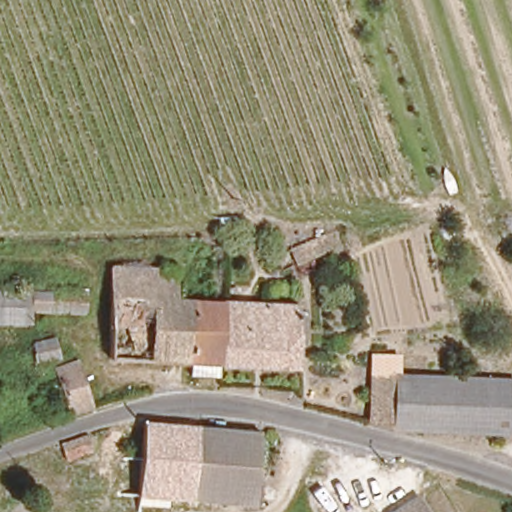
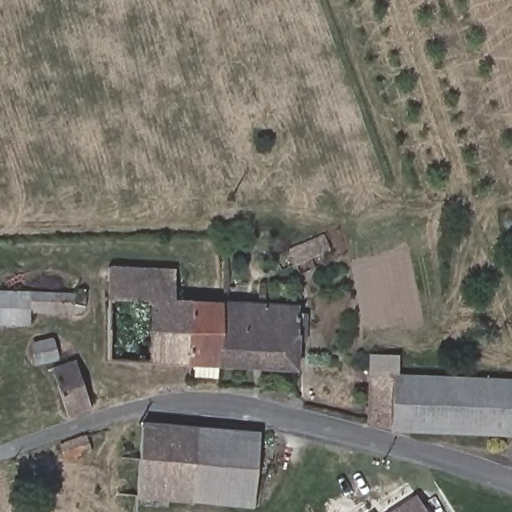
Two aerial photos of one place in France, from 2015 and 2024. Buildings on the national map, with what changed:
unchanged [(290,267),(285,255),(332,236),(336,248),(290,267)]
unchanged [(216,366),(105,360),(109,271),(174,272),(174,302),(220,304),(216,366)]
unchanged [(27,290),(87,292),(87,314),(30,312),(30,326),(0,326),(0,288),(27,290)]
unchanged [(297,308),(293,370),(216,366),(220,304),(297,308)]
unchanged [(60,352),(42,357),(37,343),(55,338),(60,352)]
unchanged [(394,358),(396,377),(512,380),(512,416),(511,434),(396,430),(370,422),(370,357),(394,358)]
unchanged [(64,385),(52,388),(49,376),(59,372),(57,366),(80,358),(95,405),(71,413),(64,385)]
unchanged [(255,507),(136,496),(142,427),(260,437),(255,507)]
unchanged [(94,448),(64,457),(60,443),(89,433),(94,448)]
unchanged [(408,512),(419,505),(424,512),(408,512)]

